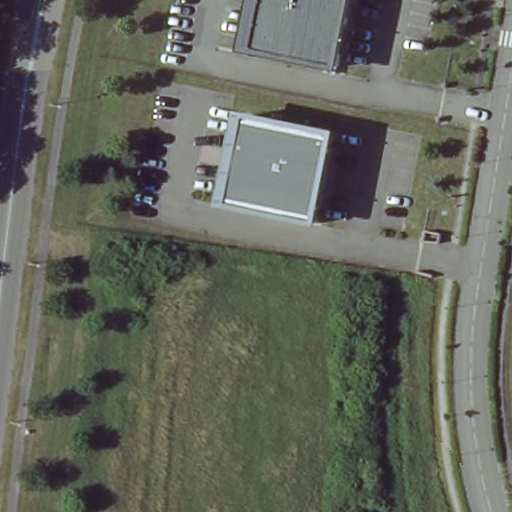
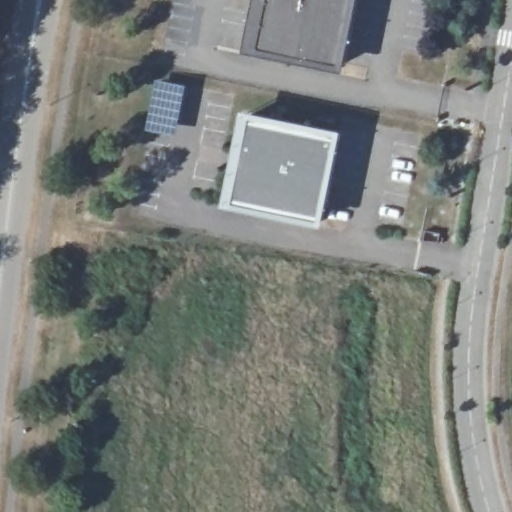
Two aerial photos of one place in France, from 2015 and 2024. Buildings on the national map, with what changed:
unchanged [(343,69),(248,49),(258,0),(357,0),(343,69)]
new [(157,80),(186,86),(177,136),(148,130),(157,80)]
unchanged [(341,136),(322,225),(235,206),(254,117),(341,136)]

